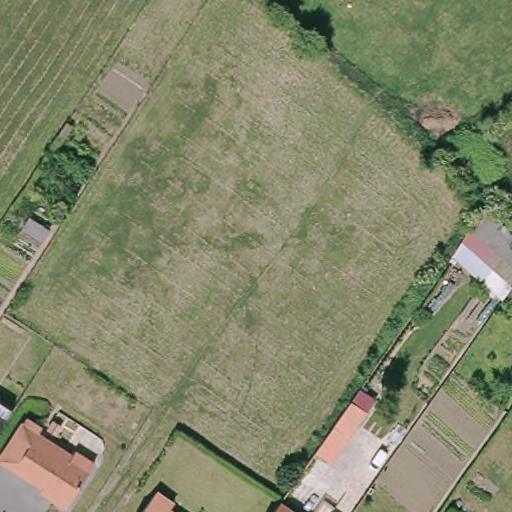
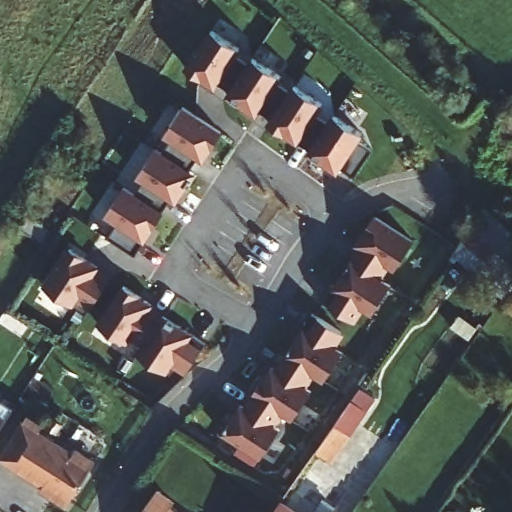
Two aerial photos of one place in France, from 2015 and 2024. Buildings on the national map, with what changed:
new [(234,49),(230,55),(244,64),(224,93),(210,85),(208,87),(182,72),(209,32),(234,49)]
new [(248,57),(275,74),(269,82),(284,91),(268,117),(253,108),(250,113),(222,98),(224,93),(244,64),(248,57)]
new [(284,91),(288,85),(316,101),(309,109),(324,118),(302,149),(264,122),(268,117),(284,91)]
new [(198,154),(194,151),(184,166),(159,148),(166,136),(162,133),(178,106),(216,129),(198,154)]
new [(324,118),(329,112),(356,129),(350,137),(368,148),(348,176),(302,149),(324,118)]
new [(190,171),(170,195),(166,194),(156,208),(134,191),(143,178),(135,173),(154,145),(159,148),(184,166),(190,171)]
new [(156,208),(138,232),(136,230),(126,246),(106,232),(113,220),(103,212),(124,183),(134,191),(156,208)]
unchanged [(512,233),(512,262),(474,222),(490,209),(512,233)]
new [(406,236),(389,263),(384,260),(374,275),(346,259),(341,255),(371,212),(406,236)]
new [(106,273),(88,303),(73,291),(66,299),(43,282),(68,245),(106,273)]
new [(384,281),(366,309),(354,302),(346,314),(318,295),(346,259),(374,275),(384,281)]
new [(145,298),(142,303),(158,313),(139,338),(126,328),(121,334),(96,318),(121,282),(145,298)]
new [(284,352),(279,348),(307,308),(334,326),(324,340),(334,347),(318,374),(307,369),(284,352)]
new [(201,338),(182,362),(169,354),(161,365),(134,348),(139,338),(158,313),(201,338)]
new [(268,363),(271,367),(284,352),(307,369),(298,383),(303,386),(285,411),(276,406),(250,388),(268,363)]
new [(236,402),(241,404),(250,388),(276,406),(265,422),(273,426),(252,451),(218,427),(236,402)]
unchanged [(353,398),(368,409),(331,457),(317,451),(353,398)]
unchanged [(13,416),(0,435),(0,407),(13,416)]
unchanged [(30,410),(43,420),(39,425),(73,449),(76,444),(95,458),(65,502),(47,488),(49,485),(2,451),(30,410)]
unchanged [(172,497),(166,505),(176,512),(139,512),(156,487),(172,497)]
demolished [(314,512),(272,512),(284,494),(286,491),(314,512)]
demolished [(345,512),(332,512),(336,506),(345,512)]
new [(281,512),(271,512),(273,509),(274,507),(281,512)]

